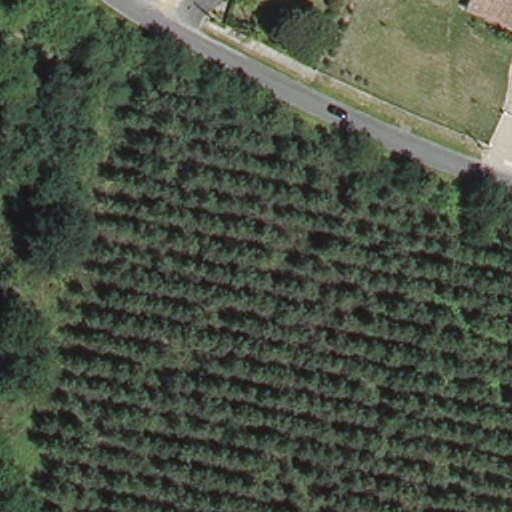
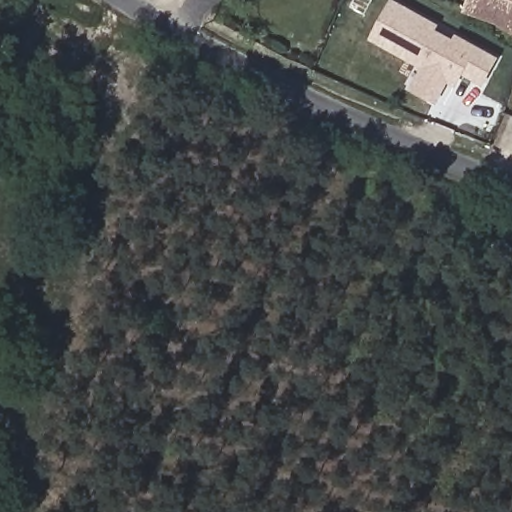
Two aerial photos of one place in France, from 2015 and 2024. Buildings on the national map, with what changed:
new [(422,67),(370,39),(392,0),(400,0),(499,54),(485,79),(489,82),(486,86),(464,74),(457,87),(449,82),(436,101),(411,87),(422,67)]
unchanged [(512,28),(485,11),(463,5),(465,0),(512,0),(512,28)]

